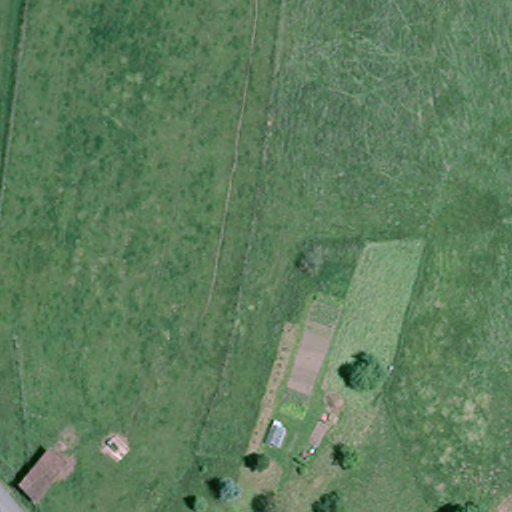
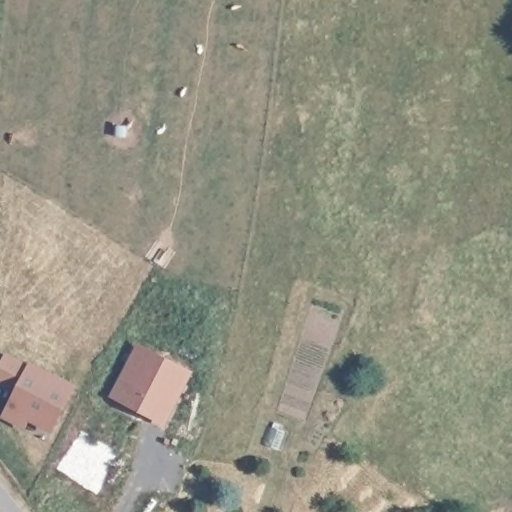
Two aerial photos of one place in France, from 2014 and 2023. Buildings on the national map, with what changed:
new [(194,370),(166,426),(111,396),(138,341),(194,370)]
new [(14,393),(0,386),(0,366),(7,352),(29,364),(30,360),(75,384),(52,432),(29,420),(25,428),(1,416),(14,393)]
demolished [(26,487),(56,446),(86,468),(49,505),(26,487)]

